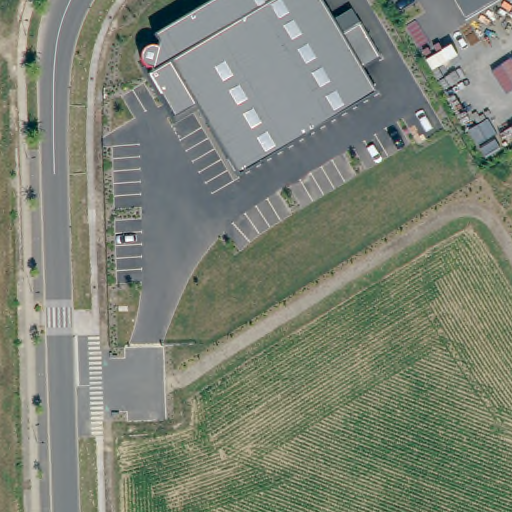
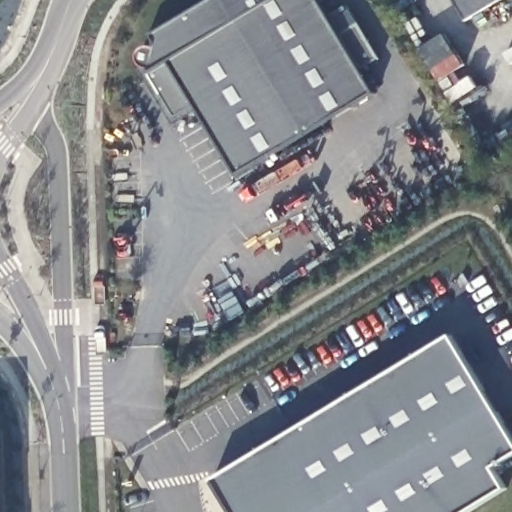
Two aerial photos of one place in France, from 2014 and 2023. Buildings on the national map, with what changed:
unchanged [(196,104),(175,117),(150,68),(144,64),(141,61),(140,55),(144,49),(150,46),(159,46),(152,34),(210,0),(318,0),(330,21),(349,9),(377,58),(360,71),(372,92),(239,174),(196,104)]
unchanged [(455,0),(500,0),(467,19),(455,0)]
new [(512,435),(512,457),(494,467),(507,489),(469,512),(233,512),(214,481),(452,336),(512,435)]

